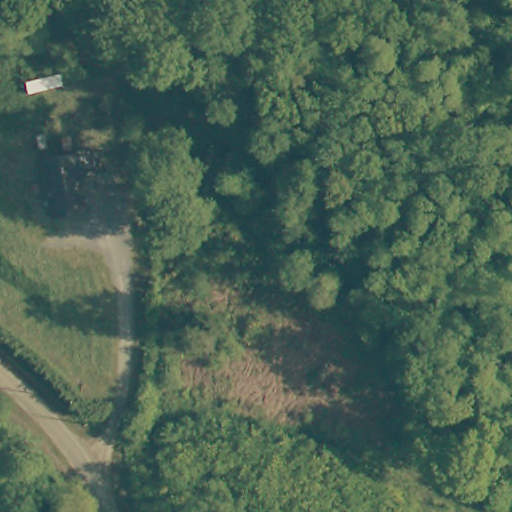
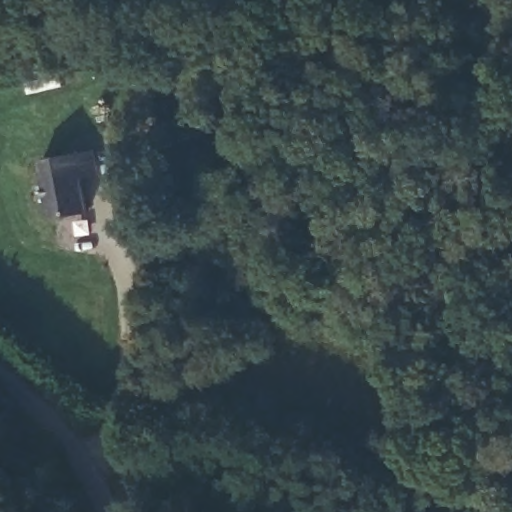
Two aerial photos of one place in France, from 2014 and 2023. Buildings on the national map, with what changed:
unchanged [(70,158),(90,154),(101,213),(81,217),(70,158)]
unchanged [(45,223),(35,164),(70,158),(81,217),(45,223)]

